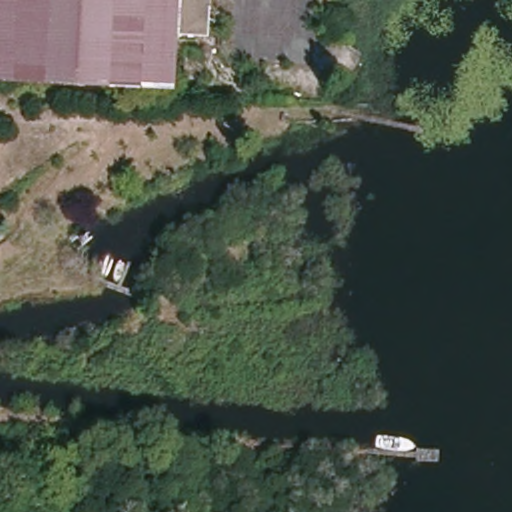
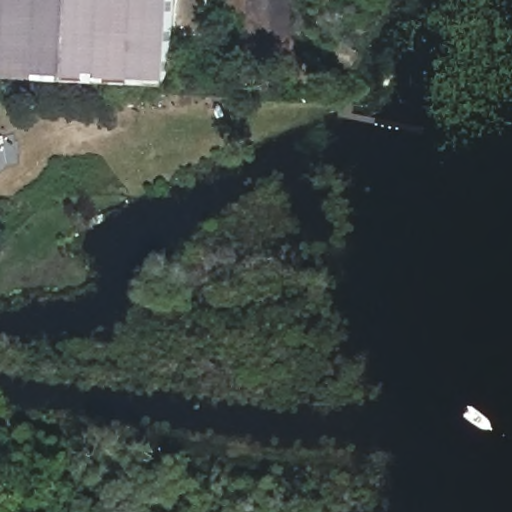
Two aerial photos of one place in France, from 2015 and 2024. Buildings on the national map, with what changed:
unchanged [(180,35),(176,84),(0,79),(0,0),(209,0),(209,34),(180,35)]

